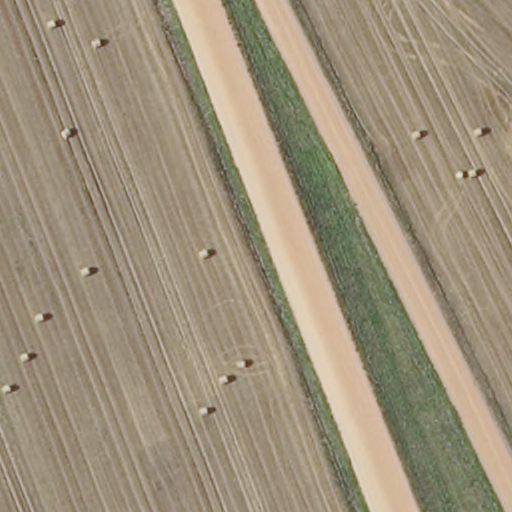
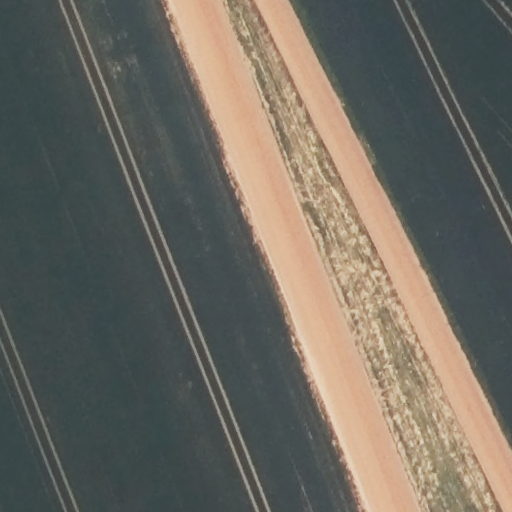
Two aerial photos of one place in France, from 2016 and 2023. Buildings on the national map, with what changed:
[]

